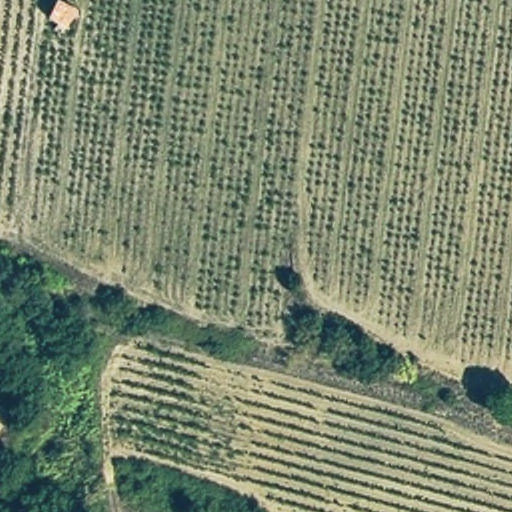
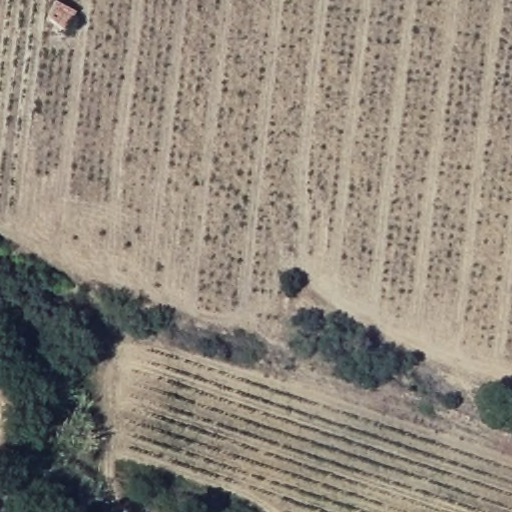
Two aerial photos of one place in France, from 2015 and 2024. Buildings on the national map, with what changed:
unchanged [(55,0),(57,0),(71,9),(60,26),(46,18),(55,0)]

